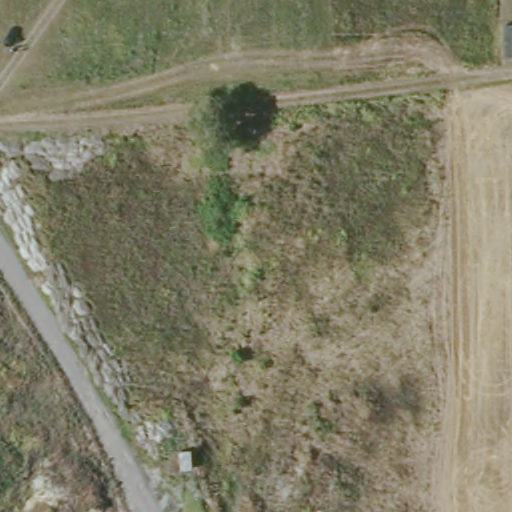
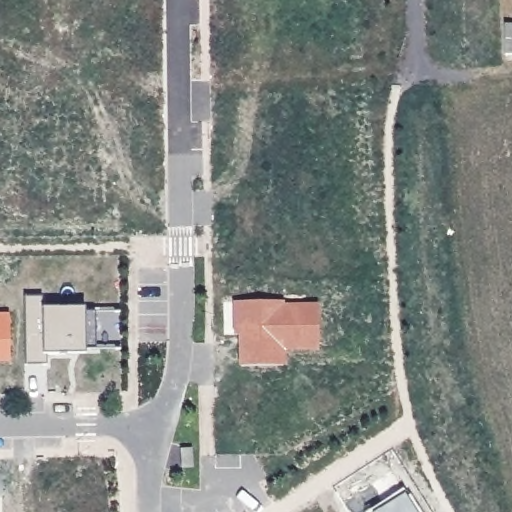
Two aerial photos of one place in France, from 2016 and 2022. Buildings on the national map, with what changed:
unchanged [(512,26),(512,55),(506,55),(505,26),(512,26)]
new [(320,350),(288,349),(287,365),(240,364),(239,330),(235,327),(235,300),(320,302),(320,350)]
new [(42,301),(43,316),(121,316),(122,354),(96,354),(96,359),(47,359),(47,369),(25,369),(25,301),(42,301)]
new [(10,364),(0,364),(0,319),(9,319),(10,364)]
new [(407,490),(420,512),(373,512),(372,511),(407,490)]

